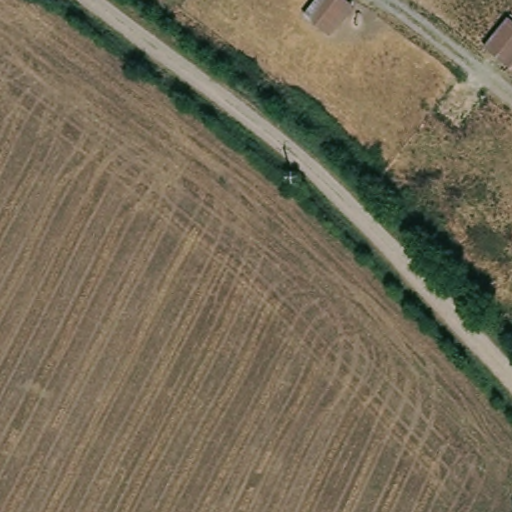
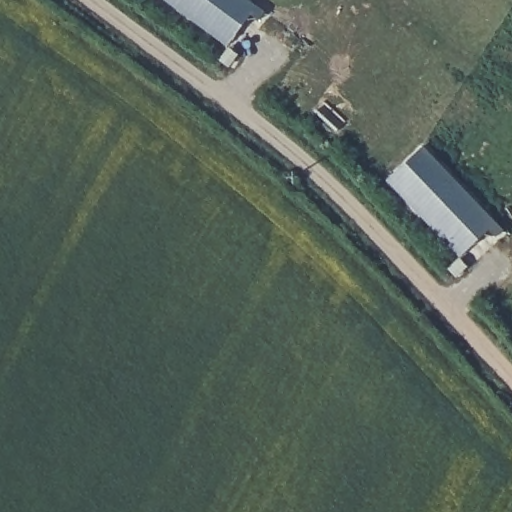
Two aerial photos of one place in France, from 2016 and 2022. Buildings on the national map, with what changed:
new [(169,0),(251,0),(266,10),(258,19),(250,13),(227,45),(169,0)]
new [(388,180),(422,148),(503,229),(497,236),(489,228),(460,255),(388,180)]

